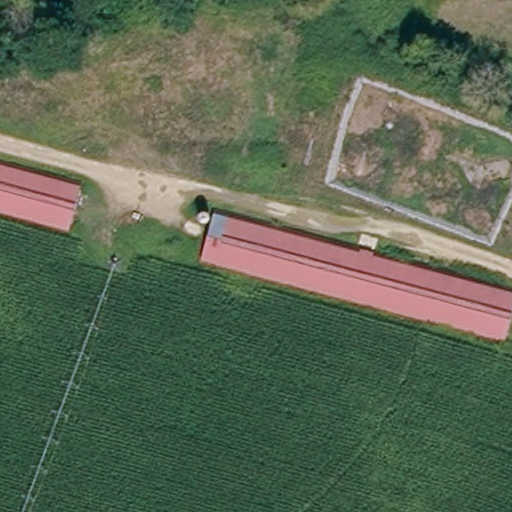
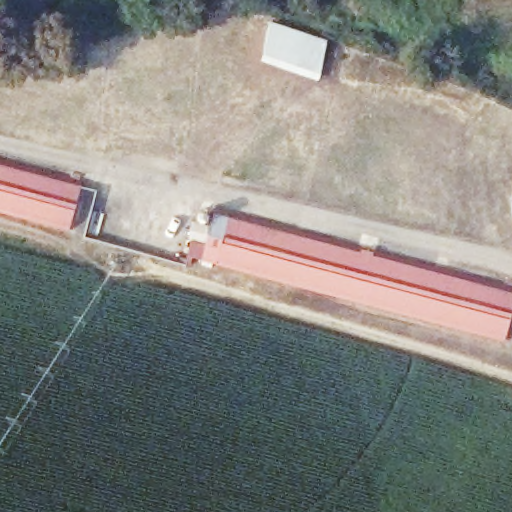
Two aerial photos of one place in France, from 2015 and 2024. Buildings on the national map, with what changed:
new [(328,38),(319,72),(261,57),(270,23),(328,38)]
unchanged [(86,185),(75,234),(0,214),(0,162),(86,185)]
unchanged [(203,242),(209,218),(225,222),(227,214),(279,228),(265,278),(199,260),(203,242)]
unchanged [(512,290),(512,299),(501,341),(265,278),(279,228),(512,290)]

